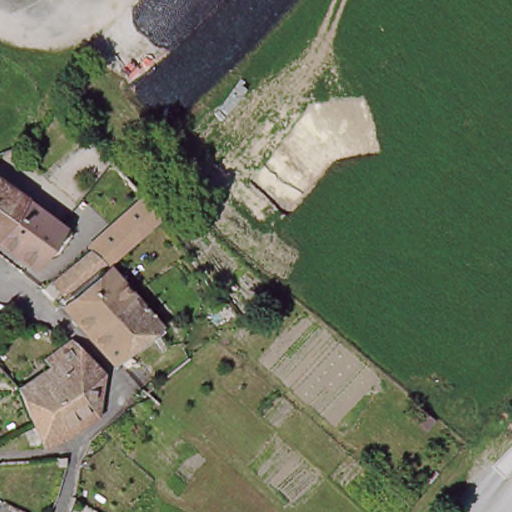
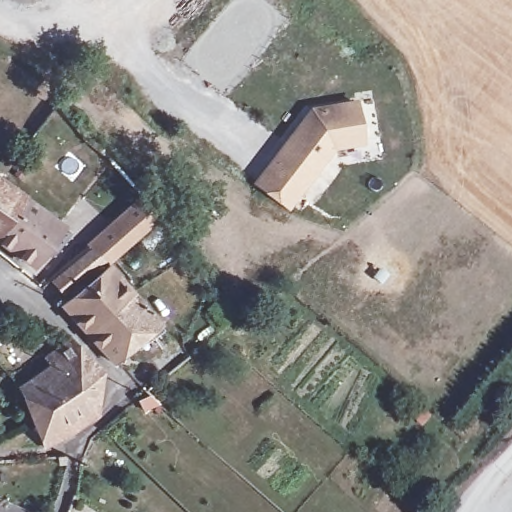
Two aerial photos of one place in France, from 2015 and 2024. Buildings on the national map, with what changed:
new [(335,150),(289,210),(254,181),(312,106),(359,100),(365,145),(335,150)]
unchanged [(25,205),(1,244),(0,243),(0,182),(27,201),(25,205)]
unchanged [(109,231),(147,197),(166,215),(128,247),(109,231)]
unchanged [(62,230),(37,268),(1,244),(25,205),(62,230)]
unchanged [(87,332),(63,305),(108,266),(134,293),(107,315),(87,332)]
unchanged [(162,326),(136,346),(107,315),(134,293),(162,326)]
unchanged [(107,315),(136,346),(115,362),(87,332),(107,315)]
unchanged [(87,390),(102,410),(77,430),(51,440),(27,385),(57,363),(52,357),(74,337),(108,369),(87,390)]

